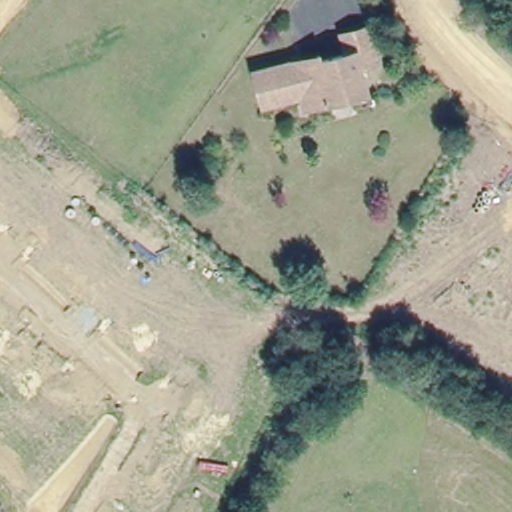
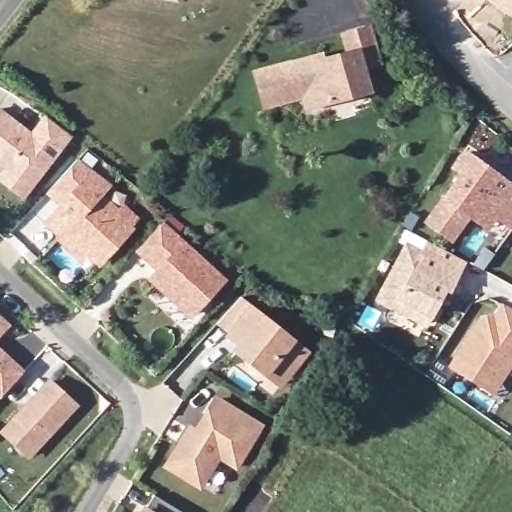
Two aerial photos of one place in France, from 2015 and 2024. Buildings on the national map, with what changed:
new [(488,0),(512,0),(512,16),(511,18),(488,0)]
unchanged [(307,104),(304,91),(266,101),(258,69),(298,59),(320,53),(322,59),(349,51),(345,33),(370,27),(379,61),(383,75),(365,79),(368,88),(351,92),(307,104)]
new [(0,172),(3,169),(0,166),(0,108),(31,131),(44,115),(71,136),(24,198),(0,180),(0,172)]
new [(466,173),(458,167),(469,152),(500,175),(472,214),(454,239),(430,222),(466,173)]
new [(64,235),(60,239),(42,223),(58,204),(46,194),(79,159),(111,185),(101,197),(134,228),(99,268),(64,235)]
new [(499,214),(489,227),(472,214),(500,175),(512,184),(512,224),(499,214)]
unchanged [(154,263),(140,250),(161,228),(175,240),(223,284),(192,318),(153,282),(163,271),(154,263)]
new [(409,247),(460,274),(451,291),(448,289),(429,324),(382,299),(409,247)]
new [(231,349),(235,345),(224,337),(228,332),(217,324),(240,298),(309,351),(281,389),(231,349)]
new [(479,317),(494,314),(501,304),(512,310),(512,365),(493,394),(447,367),(479,317)]
unchanged [(0,337),(0,319),(9,327),(0,337)]
unchanged [(5,399),(0,394),(0,351),(26,375),(5,399)]
unchanged [(53,384),(79,408),(33,458),(6,434),(53,384)]
new [(200,434),(210,417),(219,401),(263,428),(239,466),(222,456),(203,487),(171,467),(194,431),(200,434)]
unchanged [(157,497),(182,512),(148,512),(157,497)]

